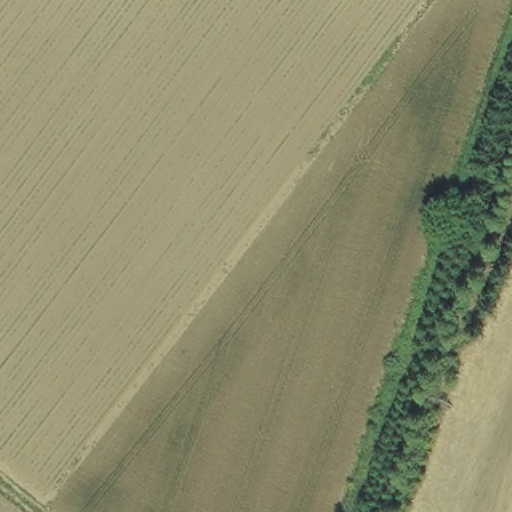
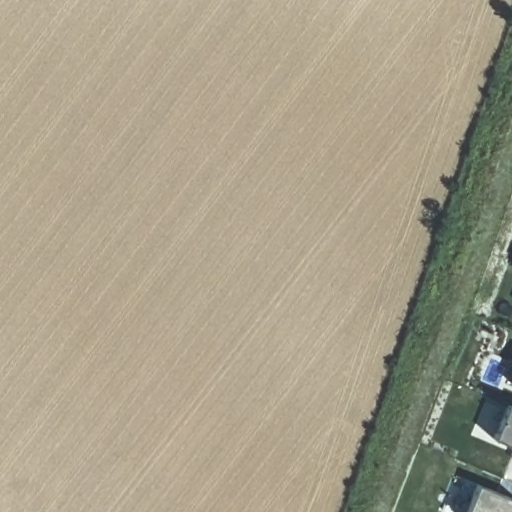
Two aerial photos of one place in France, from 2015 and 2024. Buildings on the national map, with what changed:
new [(512,405),(512,445),(497,439),(512,405)]
new [(477,484),(512,498),(512,512),(464,512),(477,484)]

